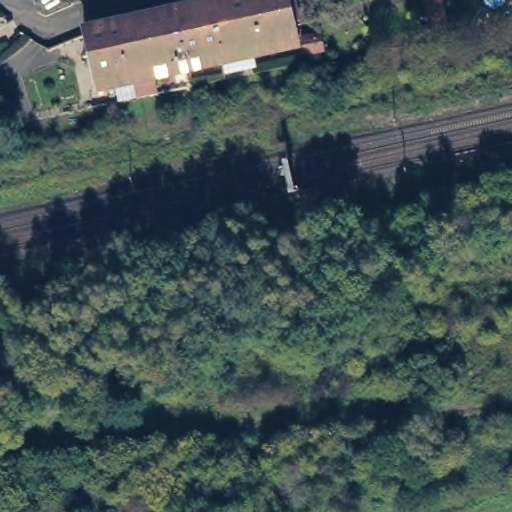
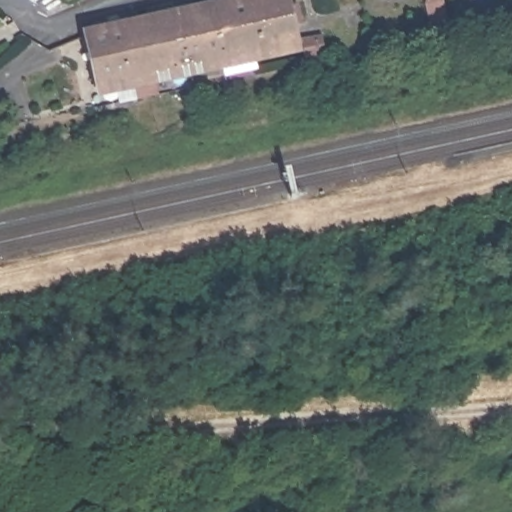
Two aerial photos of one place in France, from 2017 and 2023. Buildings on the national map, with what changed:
unchanged [(88,22),(209,0),(291,0),(298,40),(148,69),(153,87),(124,94),(120,74),(99,78),(88,22)]

